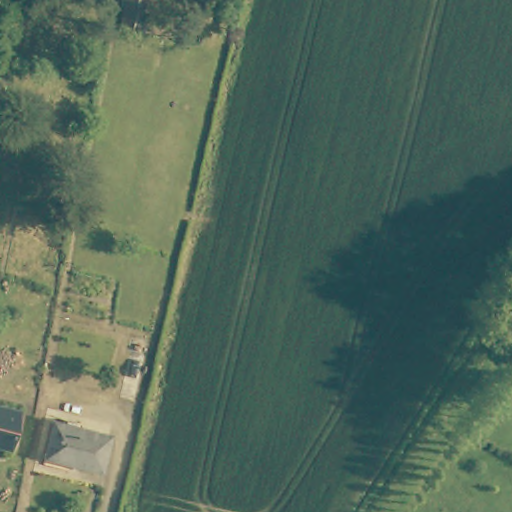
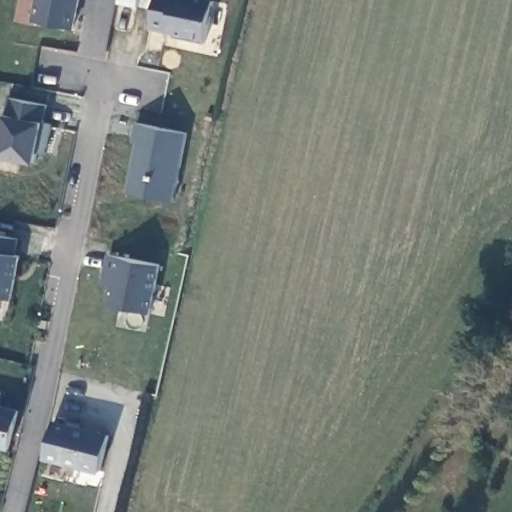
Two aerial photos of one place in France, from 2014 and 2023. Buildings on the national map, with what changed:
new [(32,21),(37,0),(81,0),(76,29),(32,21)]
demolished [(124,0),(149,0),(140,35),(118,30),(124,0)]
new [(206,43),(173,37),(173,34),(149,30),(156,0),(215,0),(206,43)]
new [(5,114),(9,98),(48,105),(45,122),(53,123),(47,154),(39,154),(36,164),(0,157),(0,141),(6,115),(5,114)]
new [(175,201),(126,193),(137,142),(132,141),(136,122),(189,133),(175,201)]
new [(0,234),(19,238),(16,255),(22,256),(12,299),(0,297),(0,234)]
new [(152,313),(107,304),(111,284),(102,282),(108,253),(162,265),(152,313)]
demolished [(135,347),(150,350),(139,396),(124,391),(135,347)]
unchanged [(8,451),(0,448),(0,407),(19,412),(8,451)]
unchanged [(58,419),(114,432),(105,469),(49,455),(58,419)]

